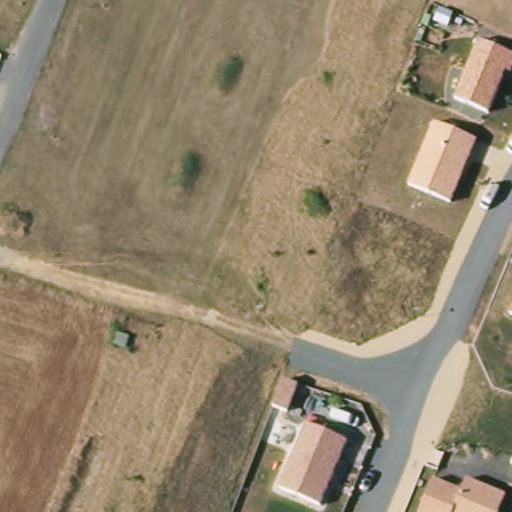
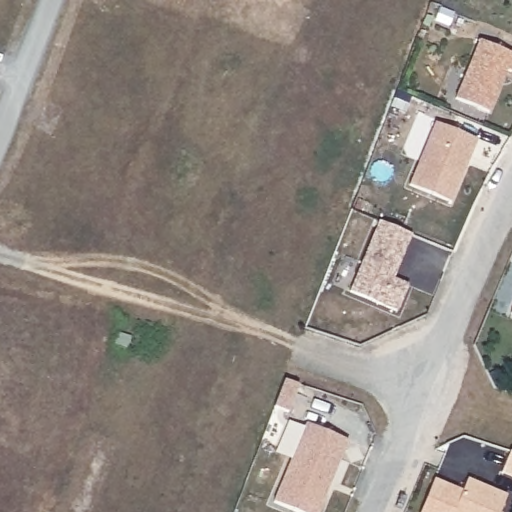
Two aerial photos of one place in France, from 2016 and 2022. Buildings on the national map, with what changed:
unchanged [(512,72),(511,74),(505,71),(489,115),(454,100),(477,40),(512,55),(512,72)]
unchanged [(475,141),(451,204),(408,187),(434,125),(475,141)]
new [(348,293),(377,221),(412,235),(394,280),(409,286),(396,312),(348,293)]
unchanged [(512,308),(512,311),(511,310),(512,308)]
unchanged [(350,440),(320,505),(280,489),(309,422),(350,440)]
unchanged [(465,489),(469,477),(507,493),(499,512),(422,512),(436,477),(465,489)]

